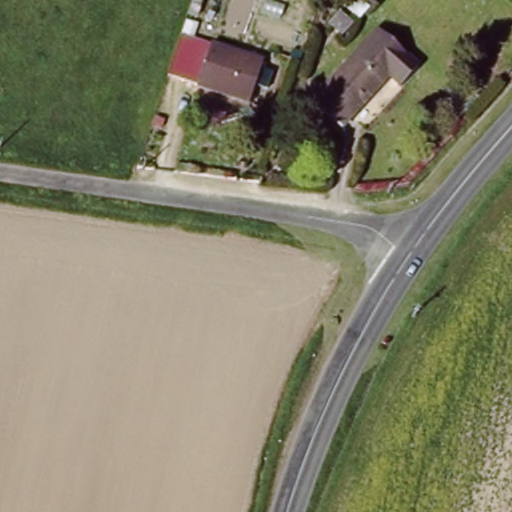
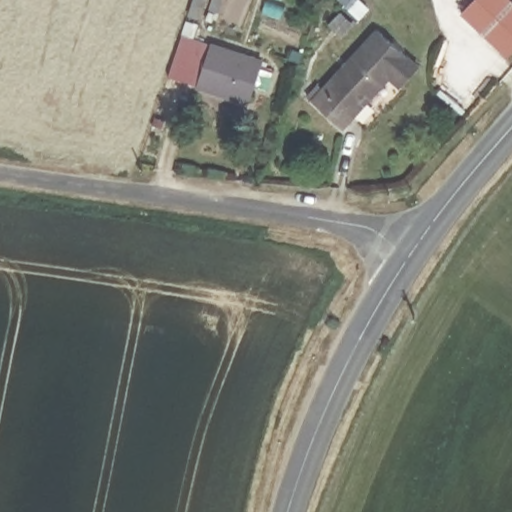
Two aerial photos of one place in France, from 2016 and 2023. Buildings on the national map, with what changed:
new [(460,13),(472,0),(512,0),(512,53),(507,58),(460,13)]
unchanged [(355,23),(345,36),(333,26),(343,14),(355,23)]
unchanged [(341,128),(311,100),(376,26),(419,66),(400,86),(388,76),(341,128)]
unchanged [(253,94),(176,79),(185,38),(261,53),(253,94)]

